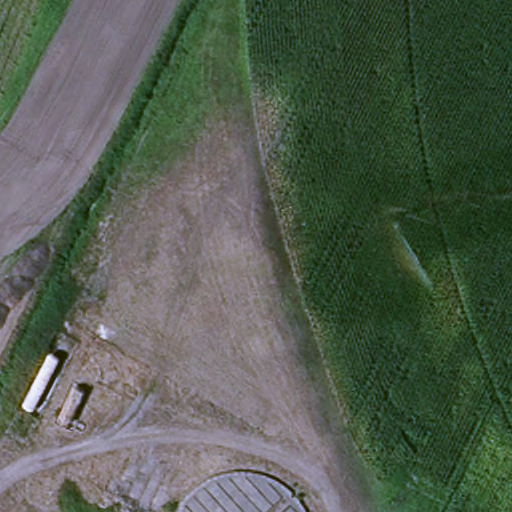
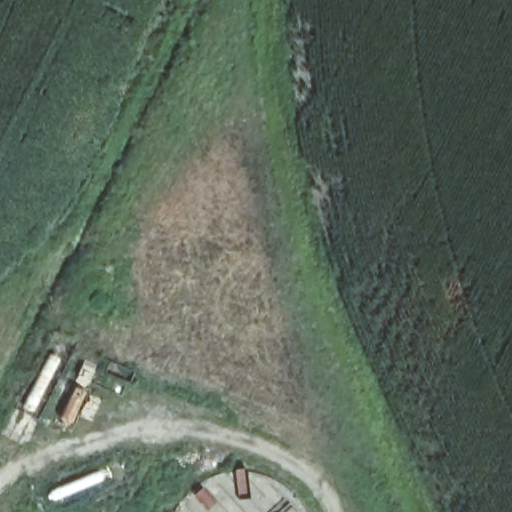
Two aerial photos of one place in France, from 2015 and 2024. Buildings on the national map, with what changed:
unchanged [(196,490),(209,481),(224,475),(240,472),(256,473),(270,478),(282,487),(296,502),(303,512),(177,512),(183,502),(196,490)]

